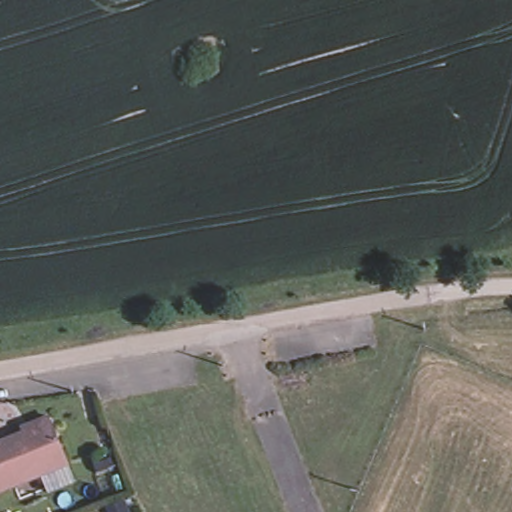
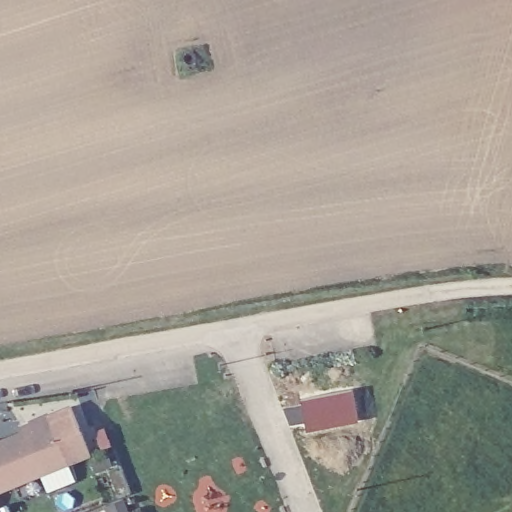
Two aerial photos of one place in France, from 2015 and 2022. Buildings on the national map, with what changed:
new [(352,391),(357,426),(306,435),(300,401),(352,391)]
unchanged [(38,469),(0,487),(0,439),(20,429),(17,424),(43,413),(62,458),(69,474),(67,474),(45,485),(38,469)]
unchanged [(105,452),(97,430),(108,425),(117,448),(105,452)]
unchanged [(125,499),(130,512),(110,512),(107,506),(125,499)]

